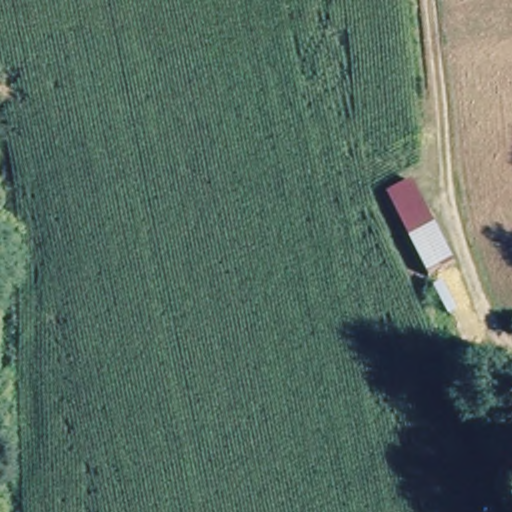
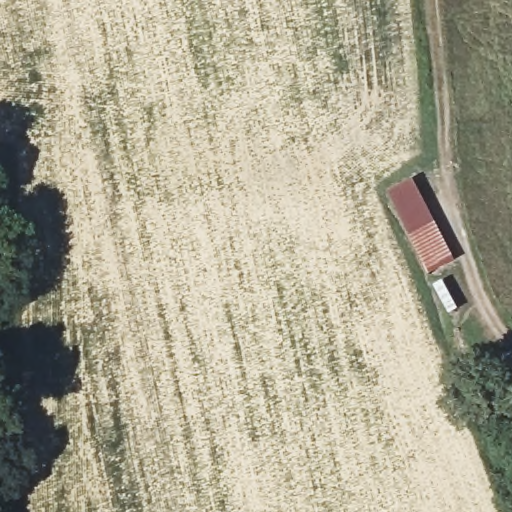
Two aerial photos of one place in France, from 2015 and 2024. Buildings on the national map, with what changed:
unchanged [(427,275),(382,194),(411,176),(455,259),(427,275)]

